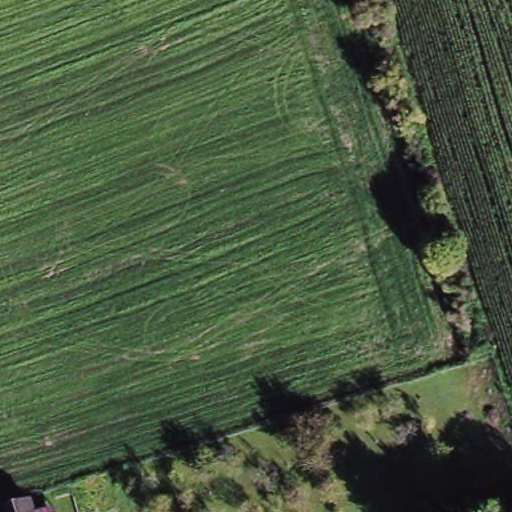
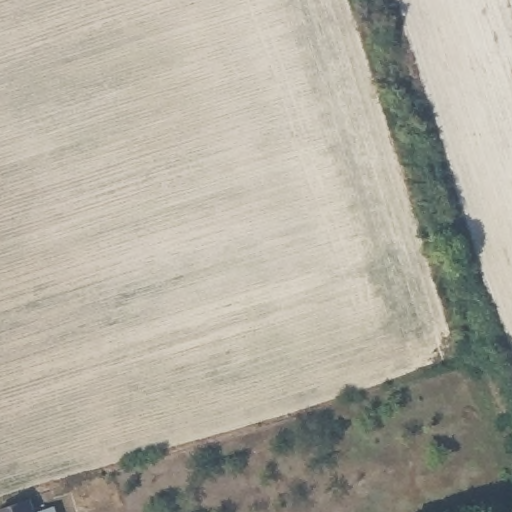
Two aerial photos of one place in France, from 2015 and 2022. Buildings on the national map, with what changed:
unchanged [(0,512),(0,507),(19,501),(23,512),(0,512)]

